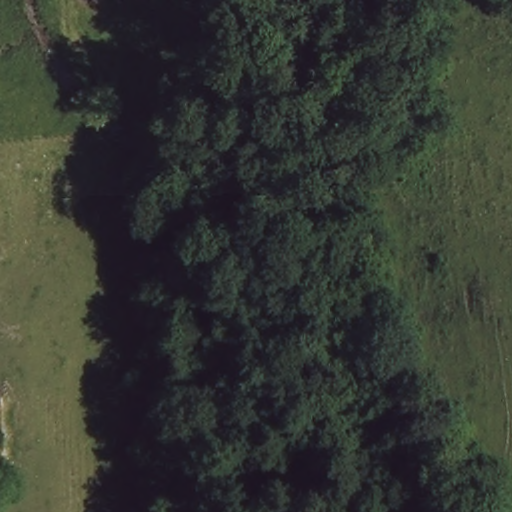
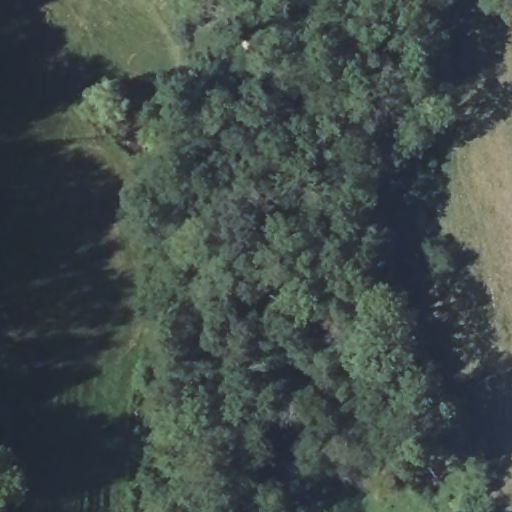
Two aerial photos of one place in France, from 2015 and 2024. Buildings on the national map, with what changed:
unchanged [(0,474),(0,389),(7,388),(10,473),(0,474)]

